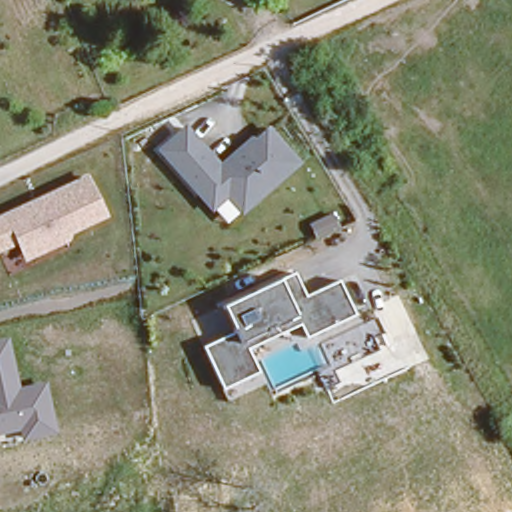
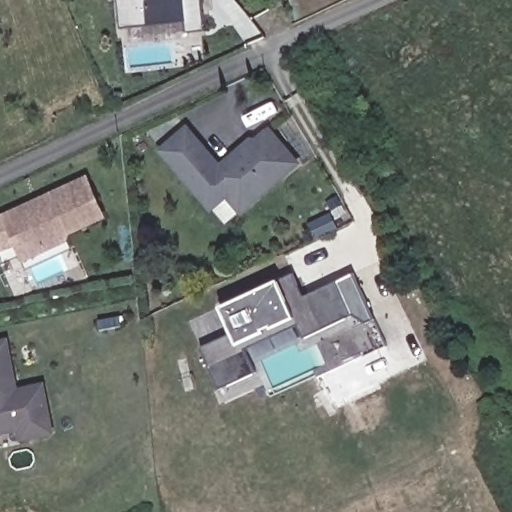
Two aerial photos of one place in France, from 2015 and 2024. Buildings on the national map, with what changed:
new [(185,32),(182,22),(145,25),(120,27),(118,0),(202,0),(205,30),(185,32)]
unchanged [(242,215),(227,200),(212,212),(156,151),(186,126),(220,161),(252,134),(258,139),(270,128),(302,163),(242,215)]
unchanged [(88,174),(110,217),(75,232),(67,243),(24,262),(15,245),(0,252),(0,216),(88,174)]
unchanged [(300,326),(247,348),(257,372),(221,389),(203,347),(234,330),(222,305),(282,281),(295,275),(304,295),(339,280),(354,315),(307,338),(300,326)]
unchanged [(335,371),(341,383),(324,390),(316,371),(331,365),(322,344),(366,323),(378,349),(335,371)]
unchanged [(8,337),(18,386),(47,381),(59,436),(22,444),(19,430),(0,434),(0,339),(8,337)]

